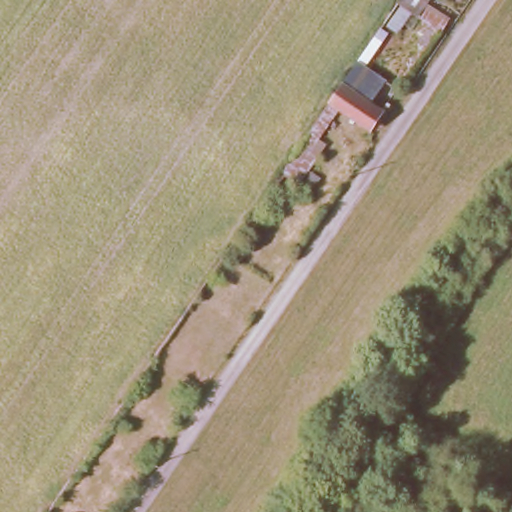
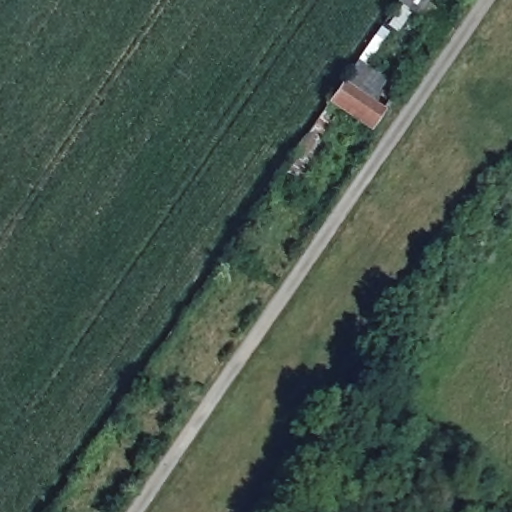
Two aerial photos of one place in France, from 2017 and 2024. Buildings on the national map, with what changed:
unchanged [(385,22),(398,2),(399,0),(422,0),(425,2),(417,13),(412,12),(398,31),(385,22)]
unchanged [(353,61),(380,79),(365,102),(378,110),(366,127),(326,100),(338,83),(353,61)]

